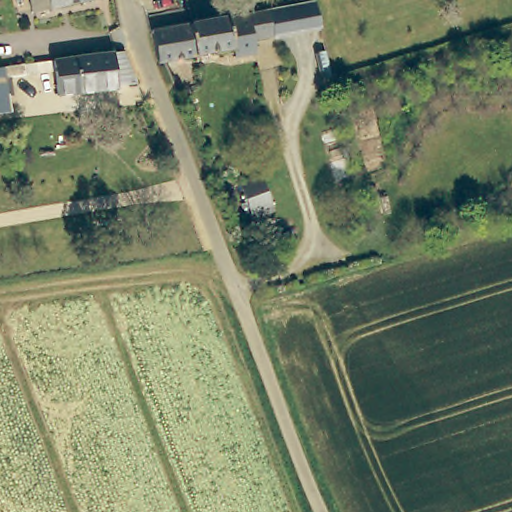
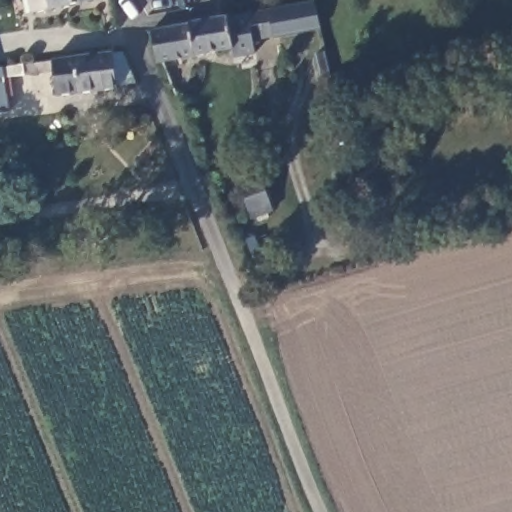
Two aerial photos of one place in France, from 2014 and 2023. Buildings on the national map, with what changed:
unchanged [(24,0),(91,0),(28,13),(24,0)]
unchanged [(320,26),(274,32),(268,6),(313,0),(320,26)]
unchanged [(274,32),(254,37),(257,50),(238,54),(236,54),(234,47),(162,61),(154,32),(193,23),(230,15),(244,11),(268,6),(274,32)]
unchanged [(41,63),(62,60),(114,54),(129,89),(63,97),(42,98),(41,63)]
unchanged [(10,109),(0,110),(0,64),(10,109)]
unchanged [(251,218),(244,197),(239,183),(259,175),(264,188),(272,212),(251,218)]

